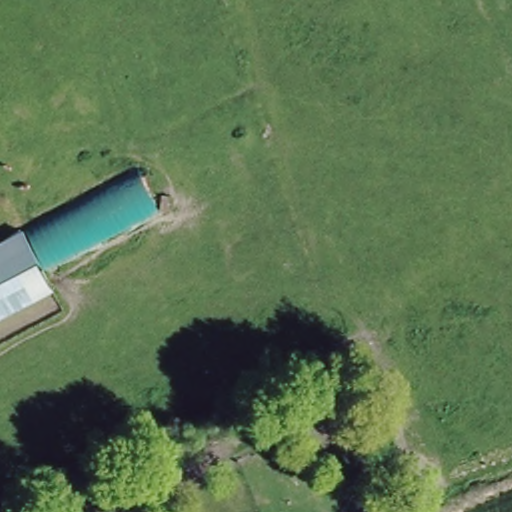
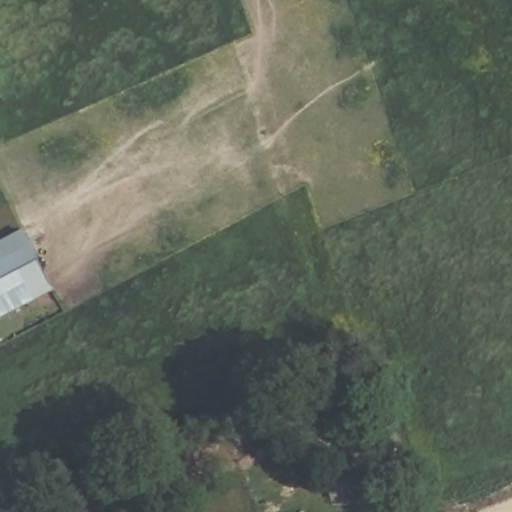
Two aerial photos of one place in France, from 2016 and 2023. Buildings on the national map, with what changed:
demolished [(140,176),(159,210),(44,268),(24,233),(140,176)]
unchanged [(57,291),(0,321),(0,238),(21,228),(57,291)]

